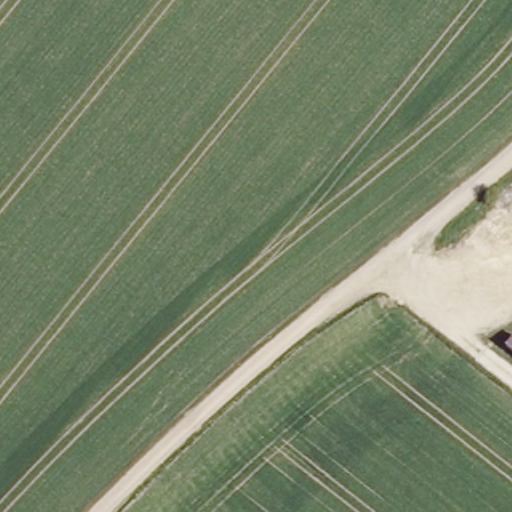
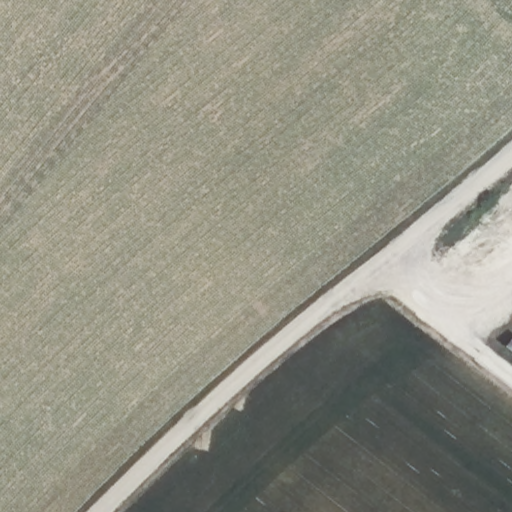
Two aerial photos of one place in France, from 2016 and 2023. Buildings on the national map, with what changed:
unchanged [(508,344),(512,338),(512,347),(508,344)]

